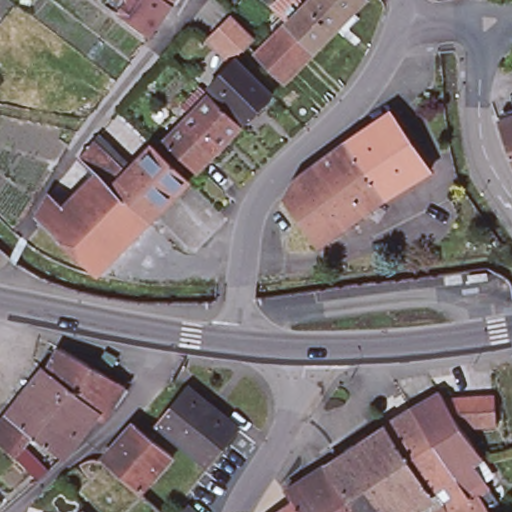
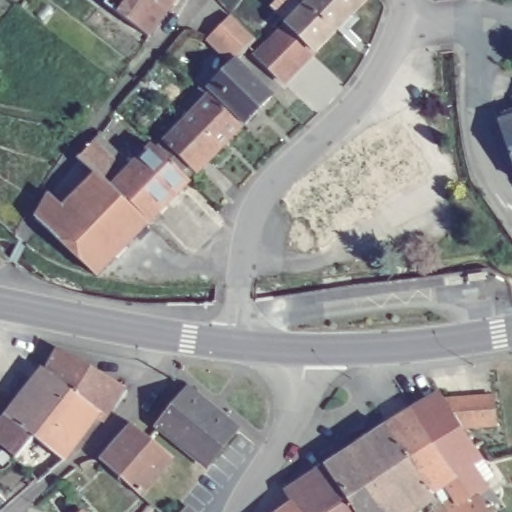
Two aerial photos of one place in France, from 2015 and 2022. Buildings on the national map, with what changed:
unchanged [(104,0),(172,0),(169,5),(166,7),(146,35),(101,4),(104,0)]
unchanged [(268,5),(273,0),(299,0),(302,4),(306,0),(362,0),(330,33),(312,52),(282,22),(284,21),(268,5)]
unchanged [(256,37),(235,60),(212,40),(235,16),(256,37)]
unchanged [(267,39),(282,22),(312,52),(282,82),(255,55),(270,41),(267,39)]
unchanged [(225,72),(239,59),(275,95),(248,122),(212,85),(225,72)]
unchanged [(94,141),(127,176),(134,170),(132,168),(155,144),(160,149),(168,141),(166,140),(212,94),(245,126),(198,172),(190,165),(183,172),(191,180),(151,221),(150,222),(100,275),(39,217),(52,192),(81,157),(94,141)]
unchanged [(512,113),(512,178),(511,178),(490,120),(512,113)]
demolished [(368,125),(391,114),(428,169),(381,199),(343,143),(368,125)]
demolished [(343,143),(381,199),(316,246),(281,199),(292,180),(343,143)]
unchanged [(100,415),(41,371),(55,348),(88,367),(119,385),(118,387),(122,390),(111,406),(107,403),(100,415)]
unchanged [(100,415),(98,417),(92,413),(57,458),(30,436),(9,457),(0,449),(0,416),(37,368),(41,371),(100,415)]
unchanged [(207,465),(190,450),(160,425),(188,390),(210,406),(205,411),(216,420),(233,433),(207,465)]
unchanged [(438,391),(457,421),(473,445),(480,455),(447,478),(410,410),(438,391)]
unchanged [(499,398),(499,431),(467,429),(467,396),(499,398)]
unchanged [(410,410),(447,478),(431,490),(425,493),(385,426),(410,410)]
unchanged [(143,497),(139,493),(101,460),(134,423),(136,425),(172,457),(144,487),(148,491),(143,497)]
unchanged [(290,505),(282,492),(323,466),(385,426),(425,493),(398,512),(300,512),(293,503),(290,505)]
unchanged [(491,512),(446,512),(438,501),(451,496),(447,478),(480,455),(493,476),(482,483),(485,488),(480,491),(477,486),(473,488),(485,507),(492,503),(495,510),(491,512)]
unchanged [(293,503),(300,512),(278,512),(290,505),(293,503)]
unchanged [(193,512),(181,512),(186,506),(193,512)]

